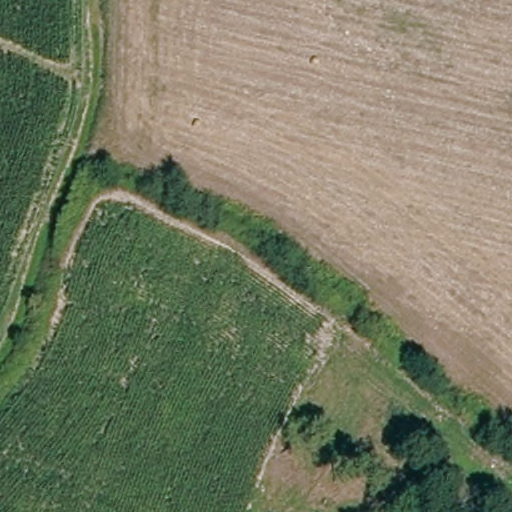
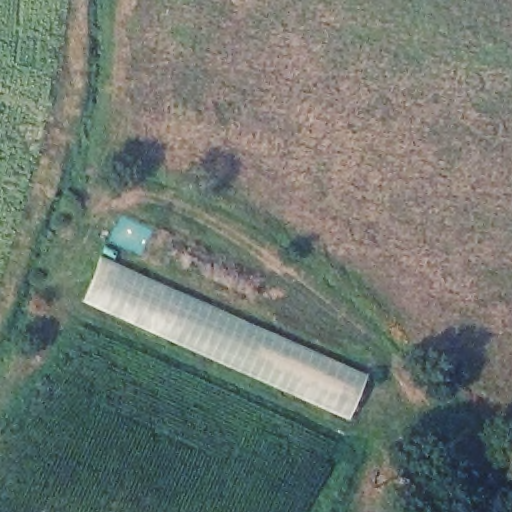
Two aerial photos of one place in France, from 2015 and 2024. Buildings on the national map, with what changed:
new [(347,419),(80,301),(100,256),(367,374),(347,419)]

